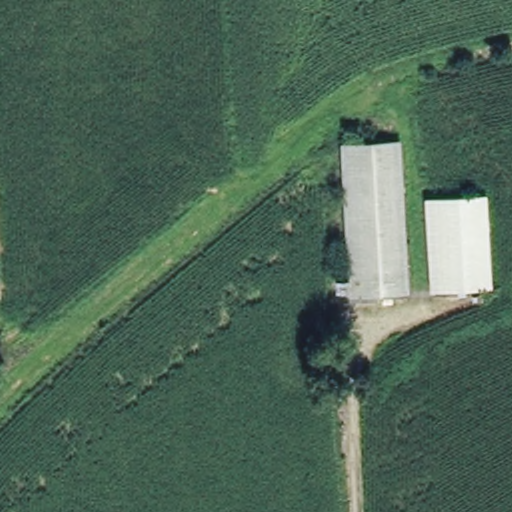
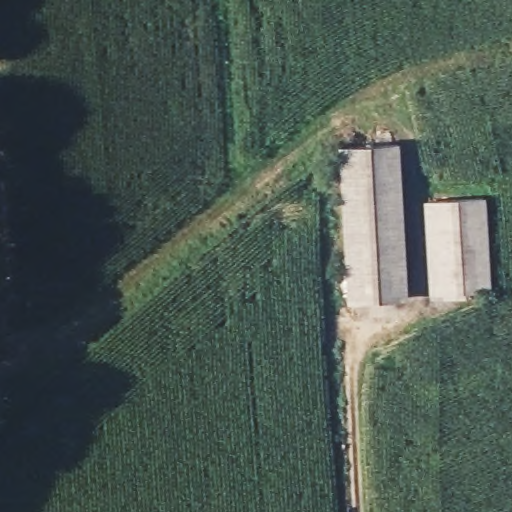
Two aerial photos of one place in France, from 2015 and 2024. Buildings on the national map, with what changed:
unchanged [(344,144),(400,141),(408,292),(352,296),(344,144)]
unchanged [(486,195),(491,286),(435,290),(429,198),(486,195)]

